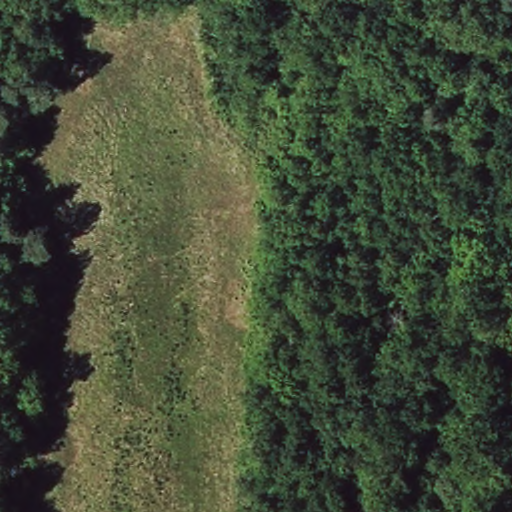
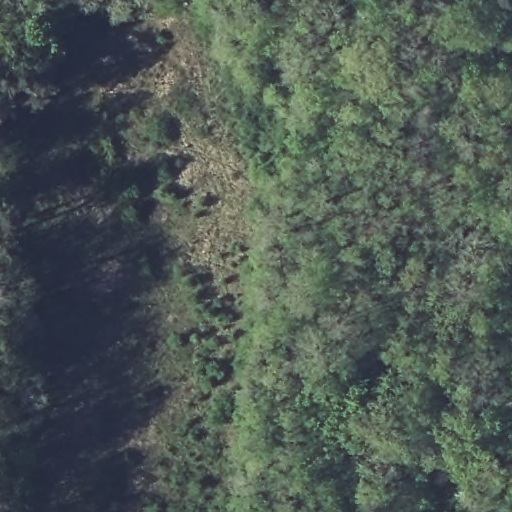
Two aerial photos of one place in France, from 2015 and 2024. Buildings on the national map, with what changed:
[]

